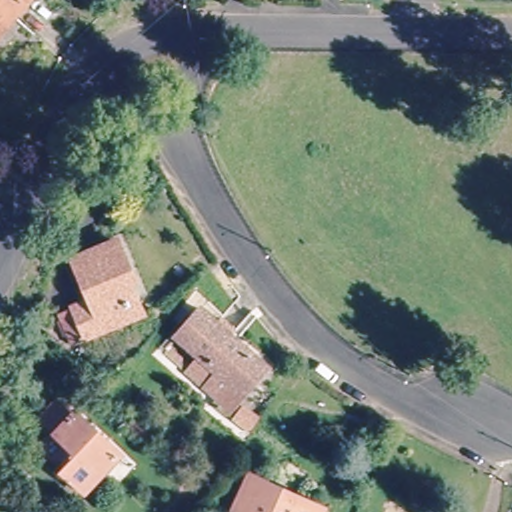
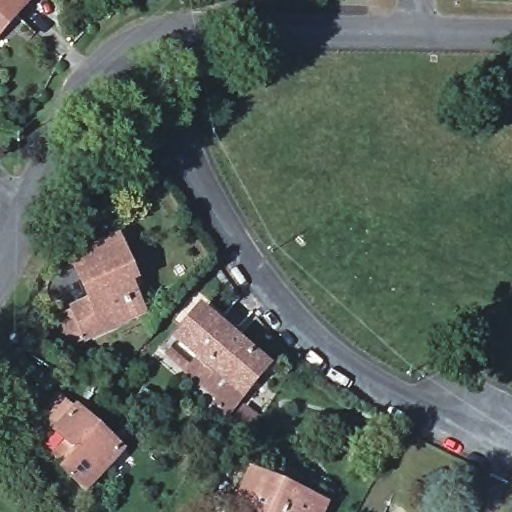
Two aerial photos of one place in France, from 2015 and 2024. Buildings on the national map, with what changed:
unchanged [(32,0),(34,4),(0,32),(0,0),(32,0)]
unchanged [(111,329),(89,338),(76,307),(97,297),(81,263),(125,241),(133,260),(123,265),(139,299),(146,313),(111,329)]
unchanged [(245,387),(241,385),(224,406),(214,397),(218,392),(185,366),(199,350),(175,330),(196,306),(209,317),(215,309),(233,324),(228,332),(256,355),(265,362),(245,387)]
unchanged [(70,468),(81,453),(48,425),(66,406),(123,457),(94,490),(70,468)]
unchanged [(259,474),(320,511),(320,512),(235,512),(259,474)]

